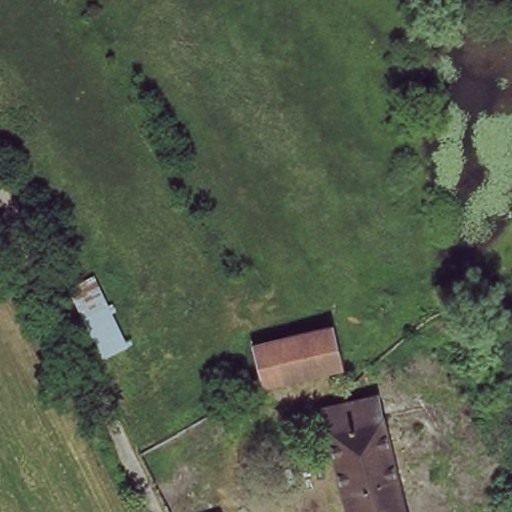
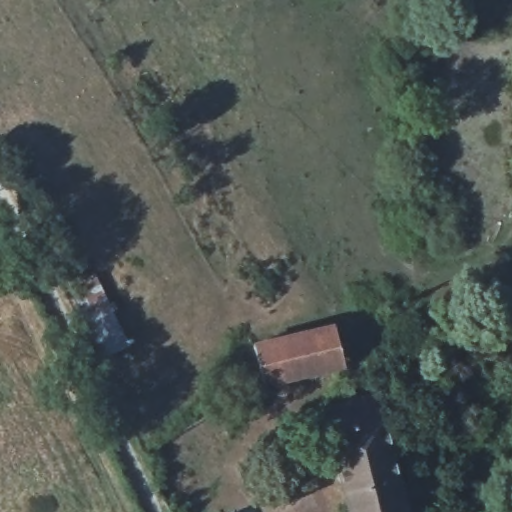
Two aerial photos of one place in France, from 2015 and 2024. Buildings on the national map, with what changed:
unchanged [(130,344),(105,359),(70,284),(97,271),(130,344)]
unchanged [(253,344),(333,326),(342,364),(263,383),(262,378),(253,344)]
unchanged [(326,408),(350,402),(380,396),(407,512),(351,512),(326,408)]

